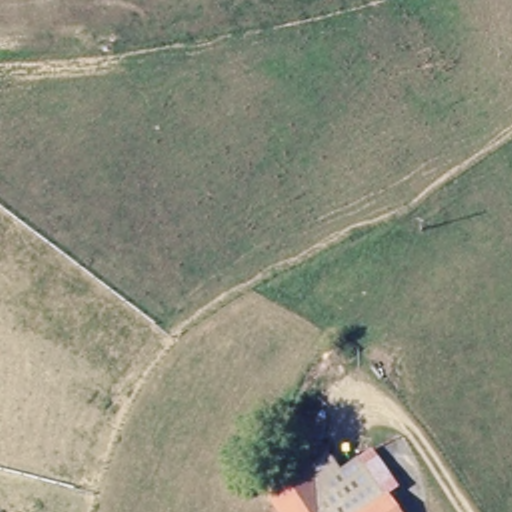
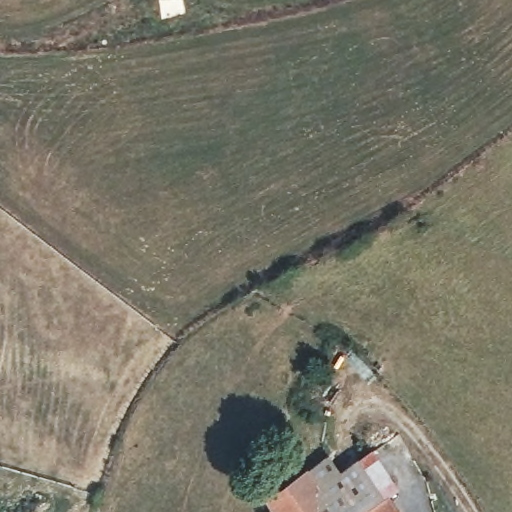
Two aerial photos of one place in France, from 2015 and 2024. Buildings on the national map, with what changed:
unchanged [(332,456),(348,475),(362,466),(399,512),(278,512),(269,500),(332,456)]

